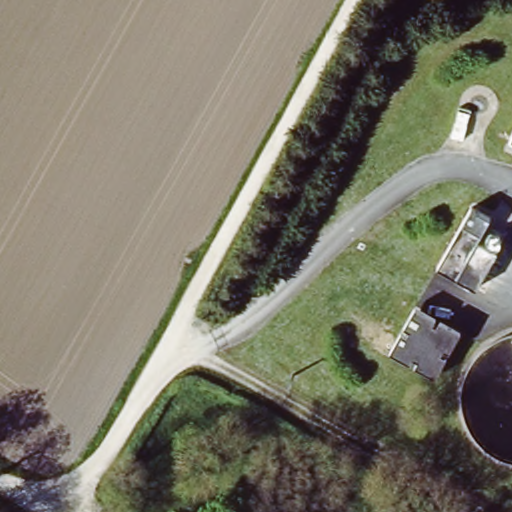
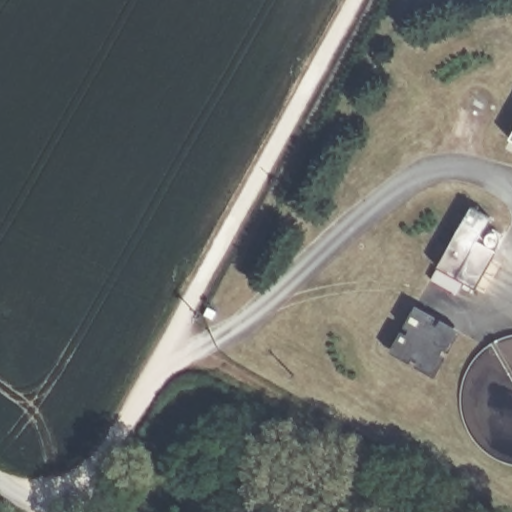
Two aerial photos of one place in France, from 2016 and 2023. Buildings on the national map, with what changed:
unchanged [(439,264),(472,200),(500,214),(490,232),(505,241),(480,289),(439,264)]
unchanged [(415,306),(462,328),(438,375),(391,352),(415,306)]
unchanged [(213,328),(202,323),(207,311),(219,316),(213,328)]

